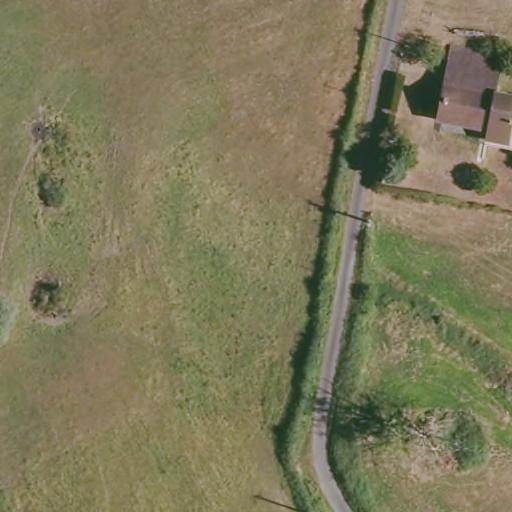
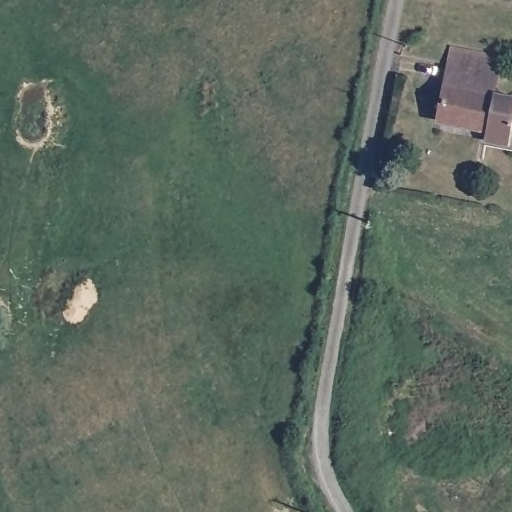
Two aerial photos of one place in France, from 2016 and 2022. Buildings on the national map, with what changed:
unchanged [(504,57),(498,94),(512,97),(512,143),(489,139),(491,130),(442,121),(455,49),(504,57)]

